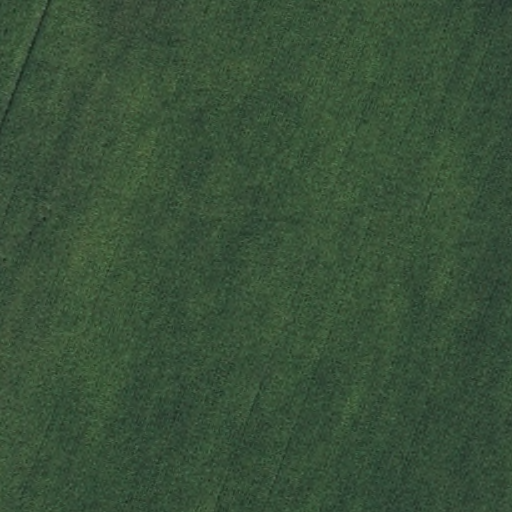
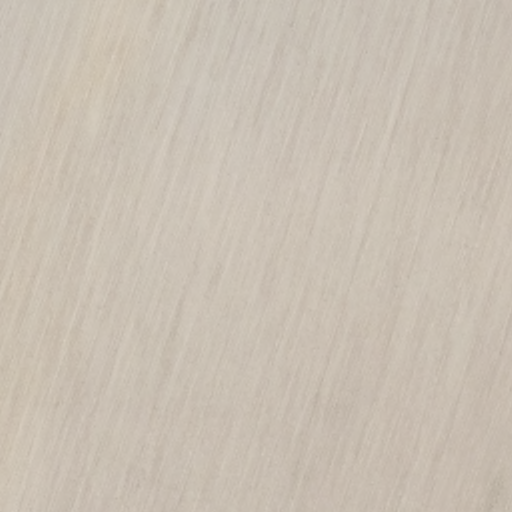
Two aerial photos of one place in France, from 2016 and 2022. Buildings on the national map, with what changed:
[]

